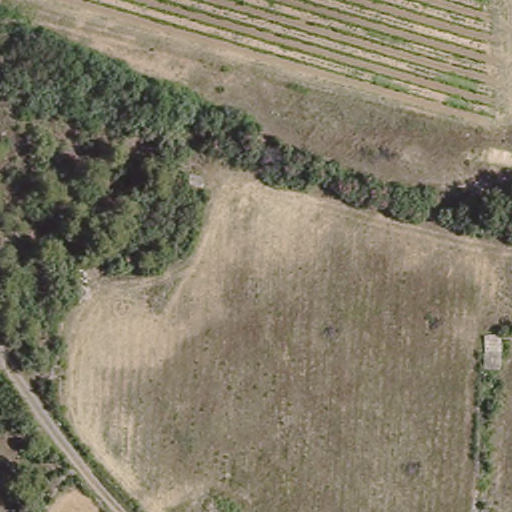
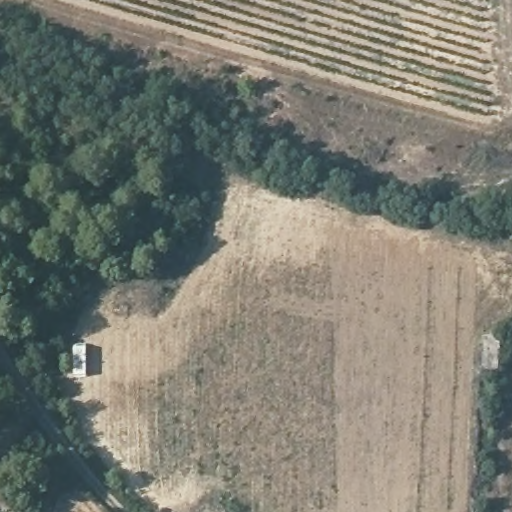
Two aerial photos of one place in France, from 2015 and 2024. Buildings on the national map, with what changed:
unchanged [(499,374),(480,374),(480,333),(502,334),(499,374)]

